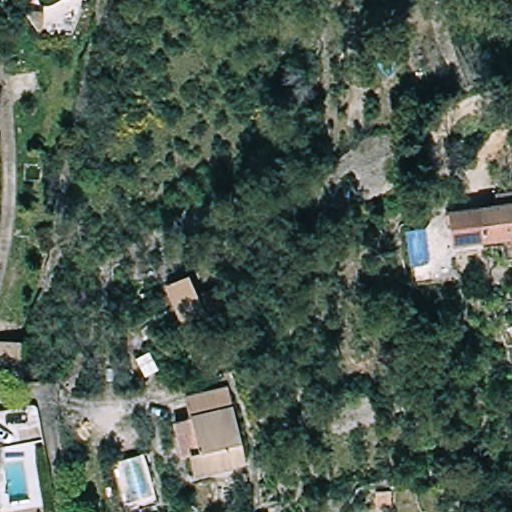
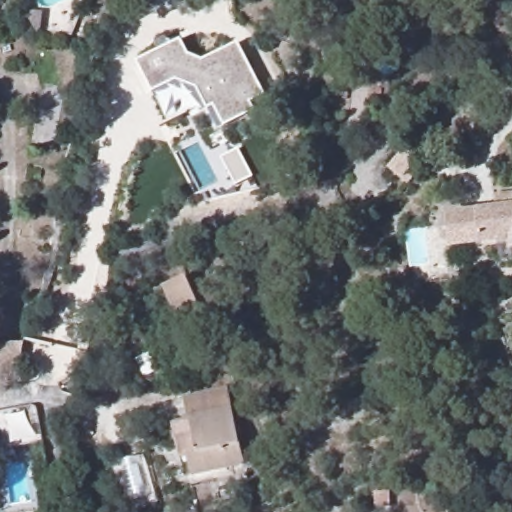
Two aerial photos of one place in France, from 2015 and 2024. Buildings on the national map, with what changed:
new [(161,51),(157,43),(167,38),(171,45),(181,39),(190,55),(203,60),(238,43),(266,95),(251,104),(256,111),(225,128),(225,127),(219,130),(208,110),(201,114),(196,104),(169,121),(154,94),(138,63),(161,51)]
unchanged [(503,249),(502,239),(475,243),(470,206),(512,199),(512,247),(503,249)]
unchanged [(188,274),(206,318),(181,334),(155,284),(188,274)]
unchanged [(25,381),(0,380),(0,338),(27,340),(25,381)]
unchanged [(219,391),(241,462),(193,477),(188,459),(200,455),(185,400),(219,391)]
unchanged [(381,508),(381,490),(396,490),(397,507),(381,508)]

